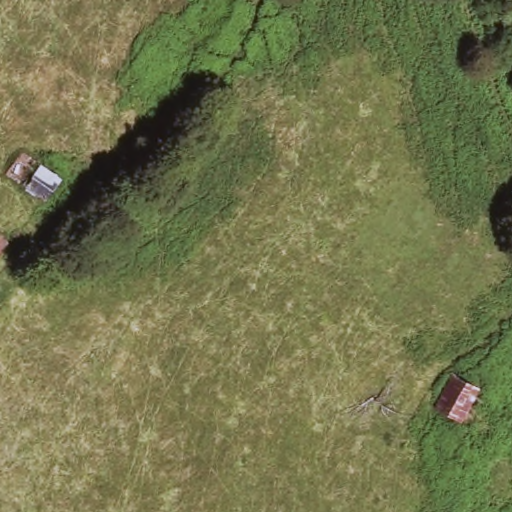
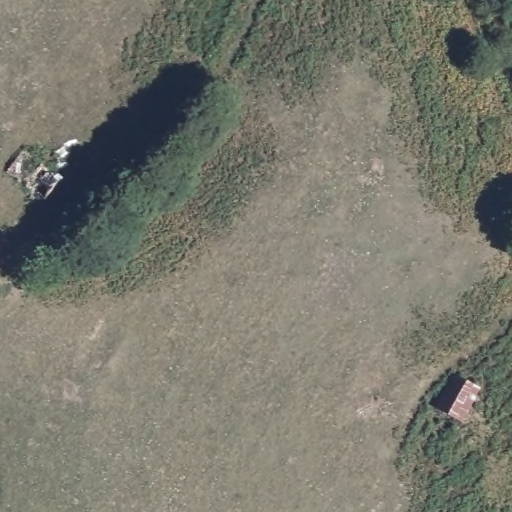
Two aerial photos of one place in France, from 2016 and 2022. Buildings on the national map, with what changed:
unchanged [(6,175),(24,150),(62,180),(54,191),(45,204),(6,175)]
unchanged [(3,254),(0,257),(0,251),(3,254)]
unchanged [(432,407),(452,371),(480,390),(471,406),(461,423),(432,407)]

